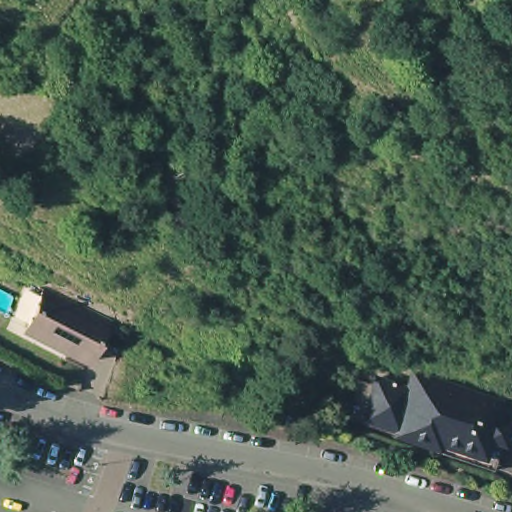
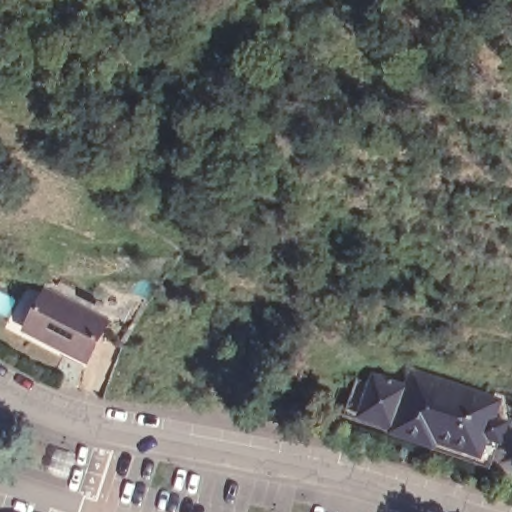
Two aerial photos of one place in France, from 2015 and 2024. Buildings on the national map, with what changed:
unchanged [(23,334),(26,327),(46,286),(109,317),(89,358),(85,365),(23,334)]
unchanged [(440,447),(442,442),(400,428),(384,423),(366,417),(348,411),(362,369),(380,374),(400,381),(415,386),(420,370),(503,399),(498,415),(510,420),(512,421),(512,433),(500,468),(440,447)]

